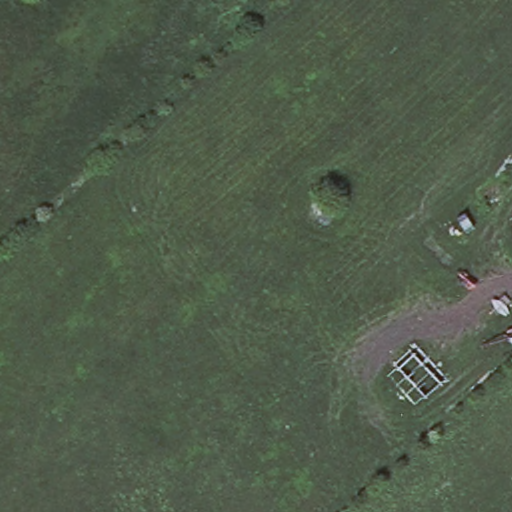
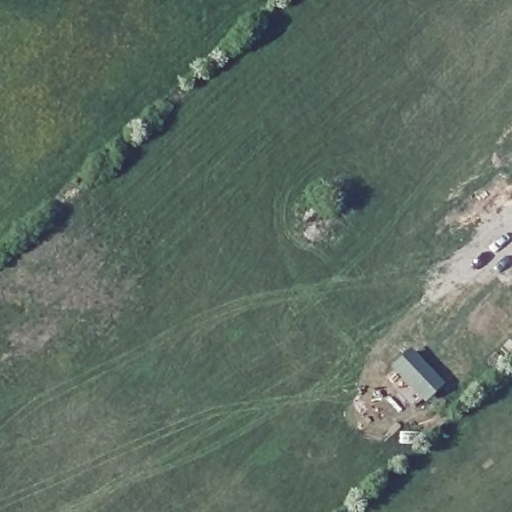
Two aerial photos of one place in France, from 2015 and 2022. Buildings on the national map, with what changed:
new [(446,383),(426,403),(389,367),(411,347),(446,383)]

